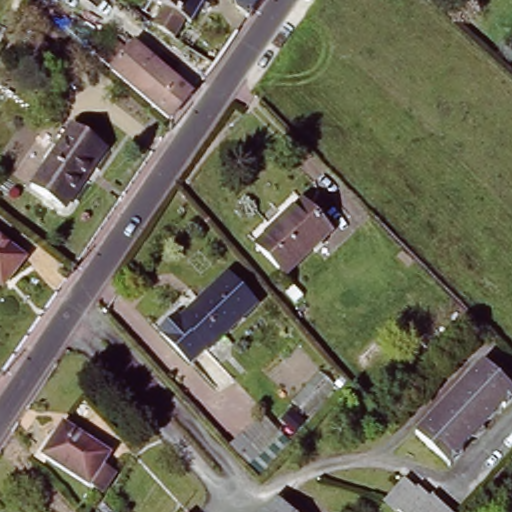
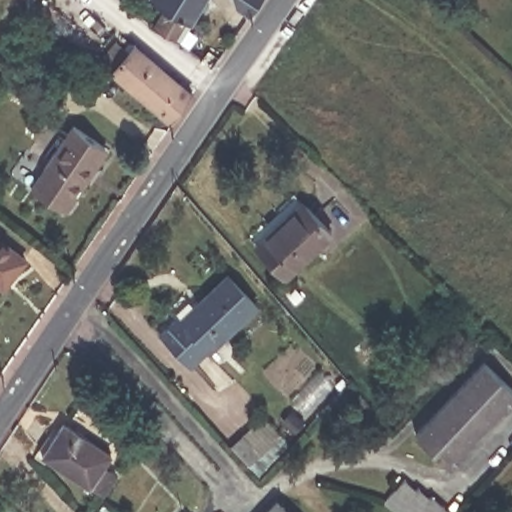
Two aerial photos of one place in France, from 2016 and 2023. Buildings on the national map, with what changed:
unchanged [(205,19),(201,16),(192,30),(187,27),(171,51),(150,36),(165,12),(157,7),(148,23),(138,16),(148,1),(150,3),(152,0),(212,0),(207,7),(212,10),(205,19)]
unchanged [(255,18),(253,21),(240,13),(237,0),(267,0),(255,18)]
unchanged [(22,53),(36,37),(60,54),(45,72),(22,53)]
unchanged [(114,77),(122,66),(130,57),(132,54),(147,65),(190,99),(170,124),(127,89),(114,77)]
unchanged [(25,187),(67,126),(100,148),(57,209),(25,187)]
unchanged [(297,203),(331,239),(325,245),(286,281),(253,245),(297,203)]
unchanged [(0,282),(0,236),(27,257),(14,274),(5,286),(0,282)]
unchanged [(260,308),(194,368),(161,336),(228,276),(260,308)]
unchanged [(424,443),(417,436),(485,363),(492,370),(424,443)]
unchanged [(504,407),(462,451),(465,454),(450,469),(424,443),(492,370),(512,388),(512,404),(507,409),(504,407)]
unchanged [(64,424),(110,455),(104,465),(115,473),(102,493),(91,485),(90,487),(43,456),(64,424)]
unchanged [(257,458),(245,469),(242,466),(224,444),(237,433),(257,458)]
unchanged [(391,512),(380,502),(400,481),(411,491),(413,489),(425,500),(427,497),(443,512),(395,512),(393,510),(391,512)]
unchanged [(288,512),(267,512),(277,501),(288,512)]

